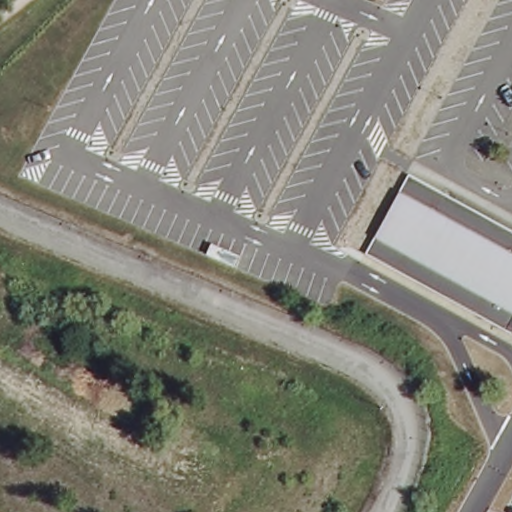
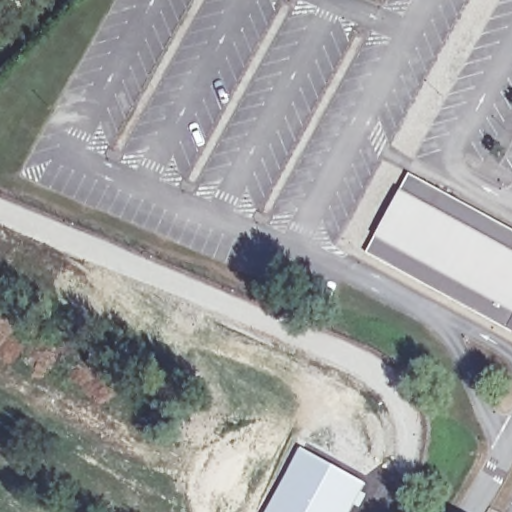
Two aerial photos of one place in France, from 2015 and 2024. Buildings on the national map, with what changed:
unchanged [(508,329),(367,252),(409,173),(512,230),(512,332),(508,329)]
new [(367,483),(361,495),(354,505),(350,512),(258,512),(296,443),(367,483)]

